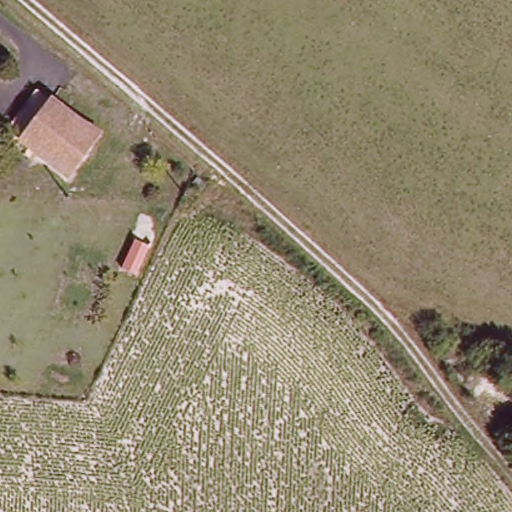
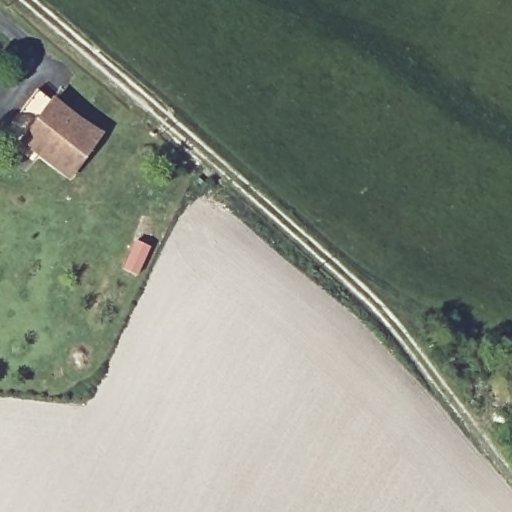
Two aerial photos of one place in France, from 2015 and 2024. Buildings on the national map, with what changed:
unchanged [(113,146),(76,198),(8,147),(49,98),(113,146)]

